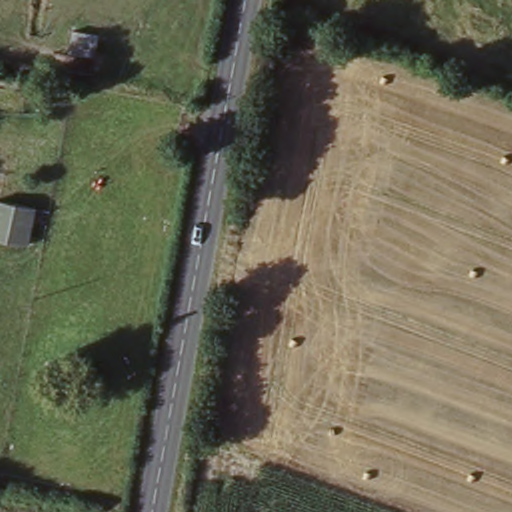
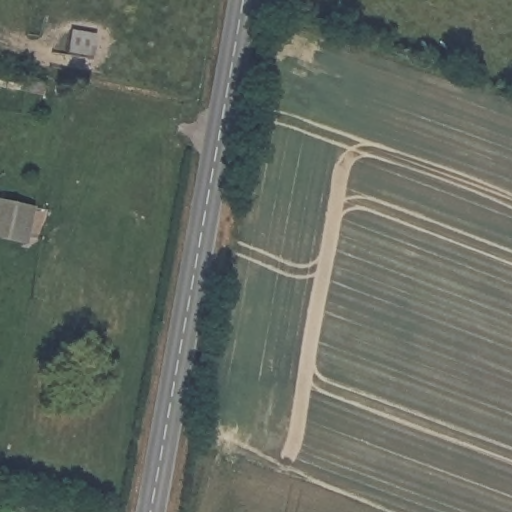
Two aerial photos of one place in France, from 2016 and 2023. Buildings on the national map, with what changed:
unchanged [(29,245),(0,240),(0,199),(36,206),(29,245)]

